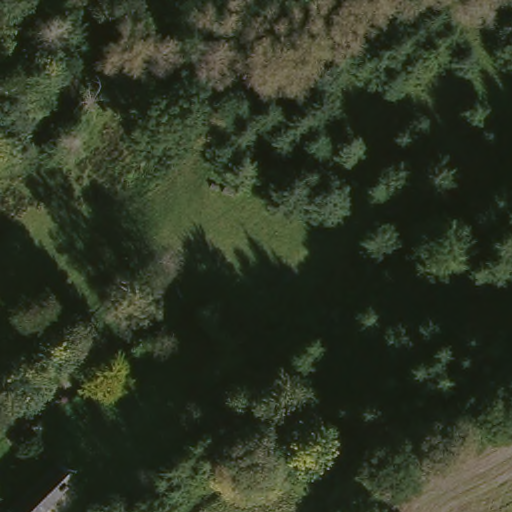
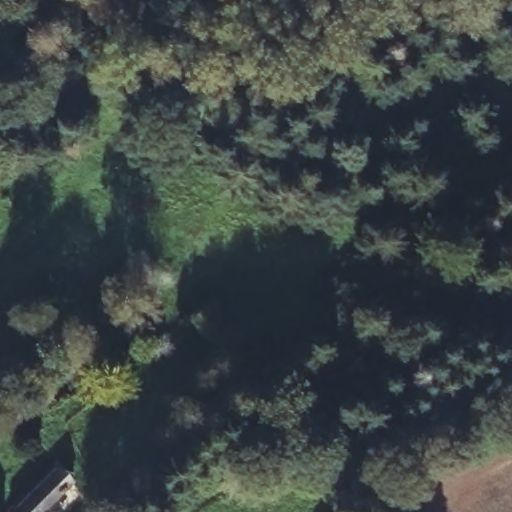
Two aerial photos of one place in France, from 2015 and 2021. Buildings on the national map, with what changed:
unchanged [(244,350),(221,365),(189,325),(213,308),(244,350)]
unchanged [(40,412),(50,405),(57,414),(49,423),(40,412)]
unchanged [(7,512),(50,462),(54,467),(68,484),(43,512),(7,512)]

